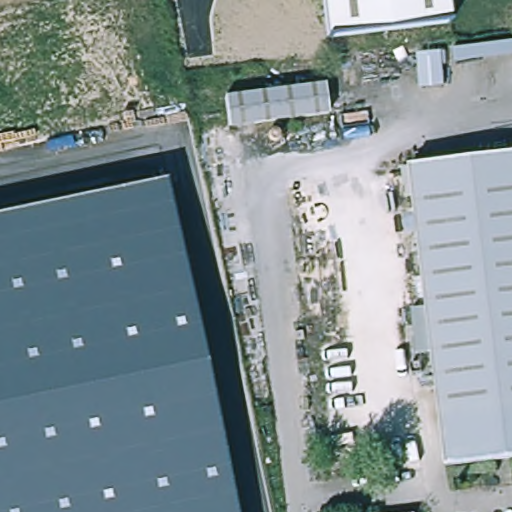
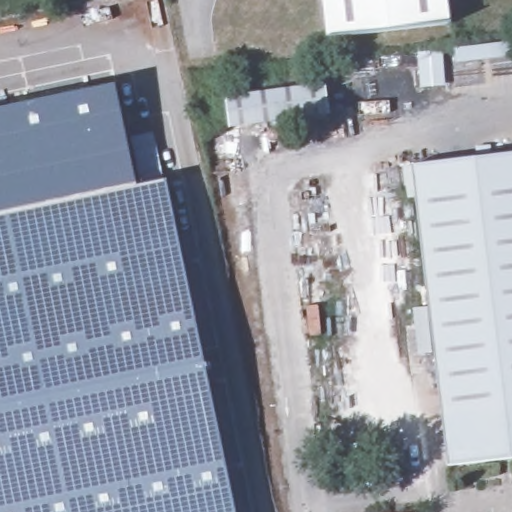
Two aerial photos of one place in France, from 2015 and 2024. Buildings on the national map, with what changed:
unchanged [(451,0),(454,22),(323,37),(319,0),(451,0)]
new [(0,110),(115,85),(136,187),(0,216),(0,110)]
unchanged [(320,86),(323,116),(223,127),(220,98),(320,86)]
unchanged [(447,463),(415,160),(512,150),(512,457),(447,463)]
unchanged [(0,216),(165,181),(233,512),(0,512),(0,216)]

